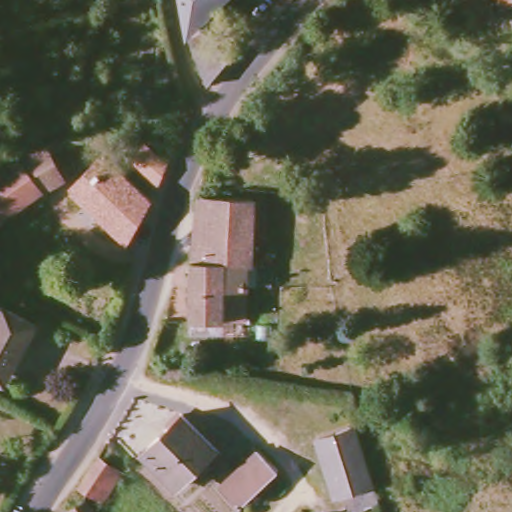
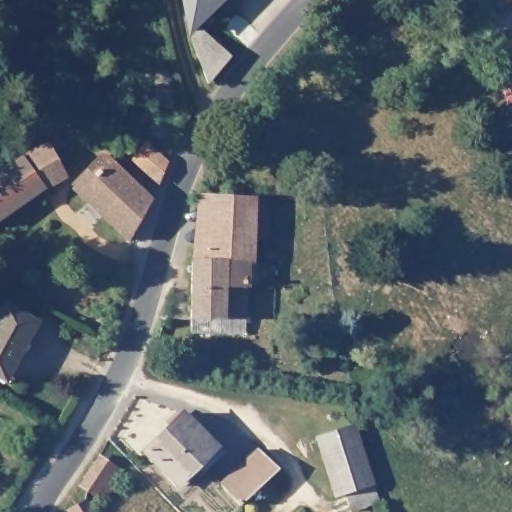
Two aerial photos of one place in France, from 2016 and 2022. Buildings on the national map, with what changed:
unchanged [(215,0),(189,25),(184,0),(215,0)]
unchanged [(191,31),(199,24),(230,51),(208,78),(191,31)]
unchanged [(22,161),(46,147),(59,139),(65,147),(54,160),(66,179),(49,190),(47,187),(0,221),(0,177),(22,161)]
unchanged [(132,166),(145,148),(166,167),(167,167),(158,189),(132,166)]
unchanged [(128,246),(76,197),(71,192),(102,157),(111,166),(151,204),(128,246)]
unchanged [(194,258),(201,196),(211,196),(256,199),(253,266),(249,266),(248,288),(226,287),(191,286),(192,257),(194,258)]
unchanged [(225,320),(190,318),(191,286),(226,287),(225,320)]
unchanged [(4,306),(35,323),(7,375),(0,371),(0,313),(4,306)]
unchanged [(142,452),(182,413),(220,451),(192,480),(187,475),(176,487),(160,471),(163,467),(155,458),(151,462),(142,452)]
unchanged [(338,495),(320,438),(359,426),(377,483),(383,502),(355,512),(349,492),(338,495)]
unchanged [(256,449),(277,470),(239,505),(219,483),(256,449)]
unchanged [(98,460),(121,475),(105,500),(82,485),(98,460)]
unchanged [(70,512),(86,501),(93,512),(70,512)]

